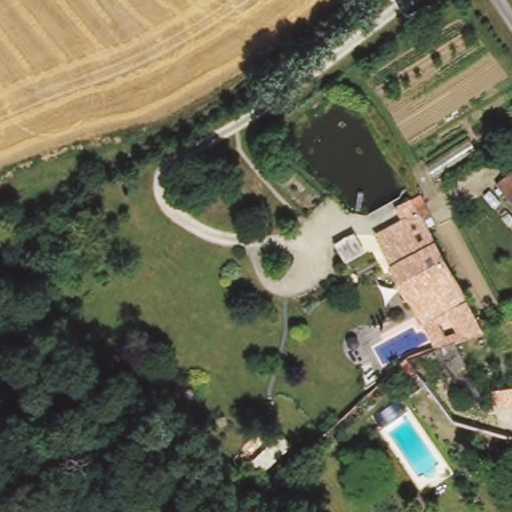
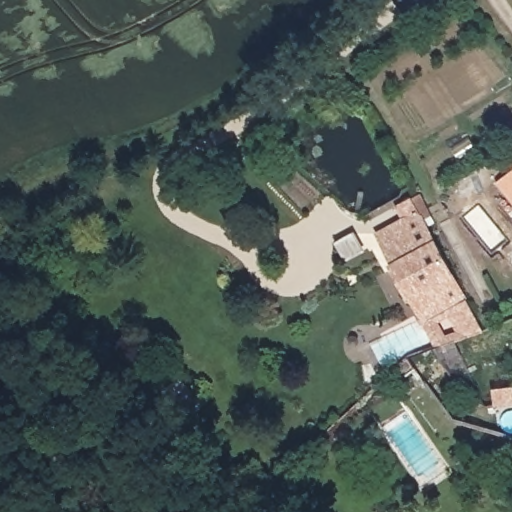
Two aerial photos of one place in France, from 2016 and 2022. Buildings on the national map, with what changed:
unchanged [(512,199),(502,187),(512,179),(512,199)]
unchanged [(453,310),(426,323),(411,296),(408,297),(391,267),(395,265),(382,240),(408,224),(401,212),(417,203),(484,334),(470,339),(453,310)]

